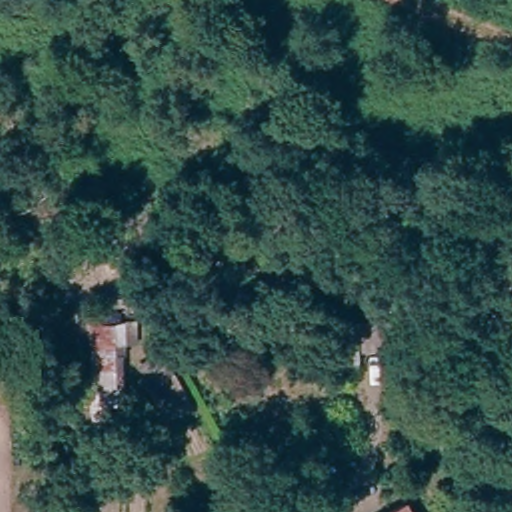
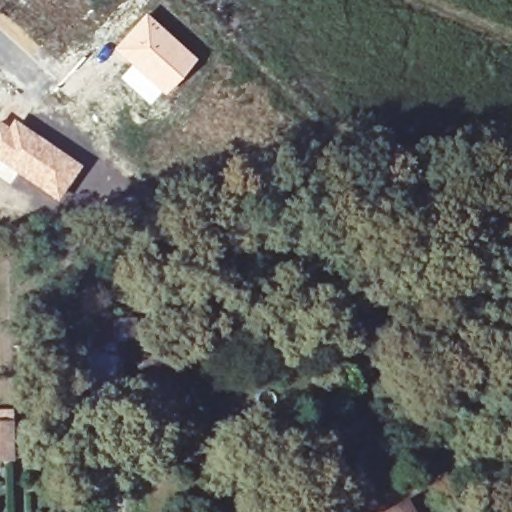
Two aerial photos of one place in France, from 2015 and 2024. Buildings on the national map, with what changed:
new [(144,11),(197,57),(163,93),(114,47),(144,11)]
new [(12,119),(81,166),(56,202),(0,164),(0,123),(6,127),(12,119)]
unchanged [(382,335),(357,335),(358,365),(325,366),(324,318),(382,316),(382,335)]
unchanged [(136,318),(136,341),(121,342),(124,415),(89,416),(87,387),(91,387),(89,320),(136,318)]
unchanged [(135,366),(164,351),(196,400),(163,417),(135,366)]
new [(0,420),(13,420),(13,460),(0,461),(0,420)]
unchanged [(406,500),(412,512),(385,512),(406,500)]

